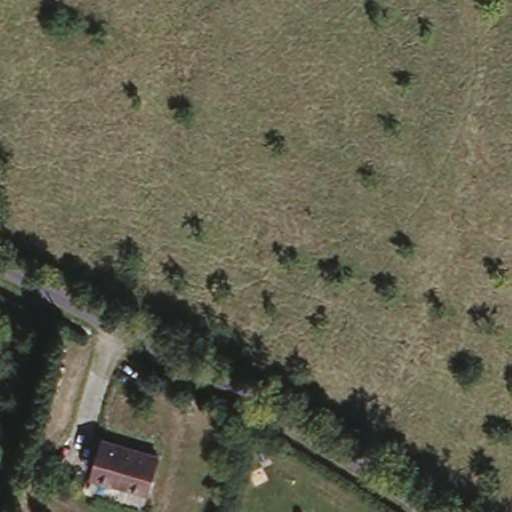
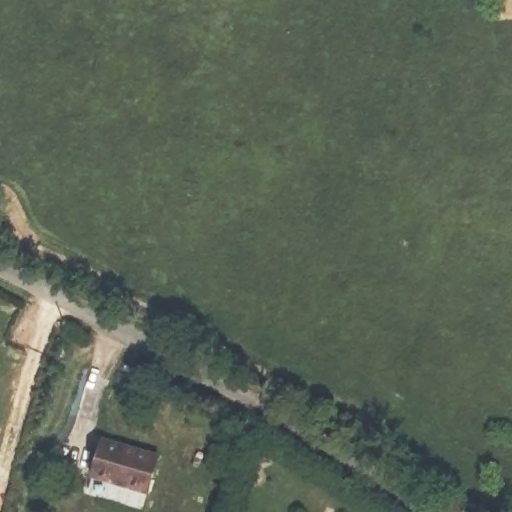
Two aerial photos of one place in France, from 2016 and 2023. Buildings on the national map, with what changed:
unchanged [(162,456),(147,499),(89,477),(105,434),(162,456)]

